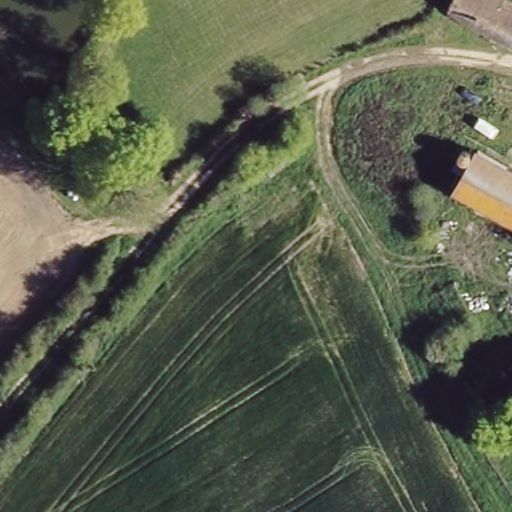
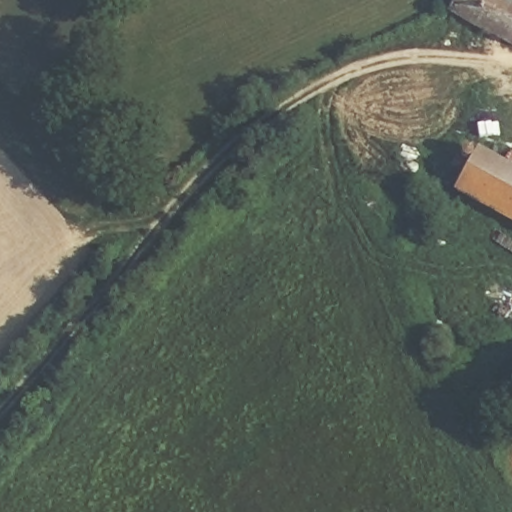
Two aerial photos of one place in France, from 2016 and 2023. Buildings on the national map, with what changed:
unchanged [(450,9),(456,0),(504,0),(512,5),(512,49),(511,50),(450,9)]
unchanged [(512,226),(453,195),(465,171),(457,162),(465,144),(512,169),(512,226)]

